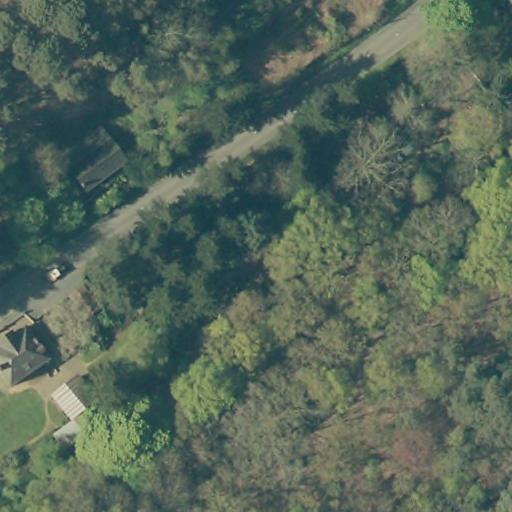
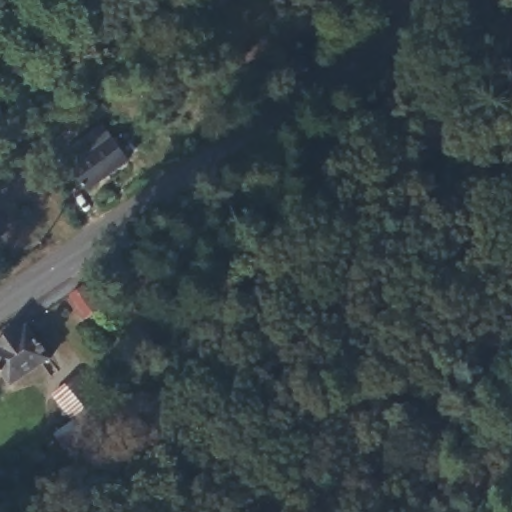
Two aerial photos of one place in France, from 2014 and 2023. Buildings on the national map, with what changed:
unchanged [(462,70),(479,54),(503,78),(485,94),(462,70)]
unchanged [(135,158),(92,190),(77,166),(119,136),(135,158)]
unchanged [(356,204),(374,183),(388,195),(371,216),(356,204)]
unchanged [(80,298),(95,289),(109,314),(93,323),(80,298)]
unchanged [(0,364),(0,348),(8,341),(6,339),(15,332),(16,334),(32,324),(55,357),(28,377),(31,382),(26,385),(24,381),(16,387),(0,364)]
unchanged [(82,373),(113,411),(66,449),(56,438),(72,422),(54,398),(82,373)]

